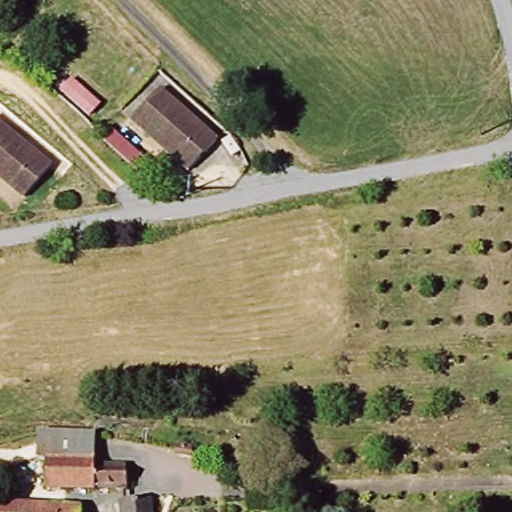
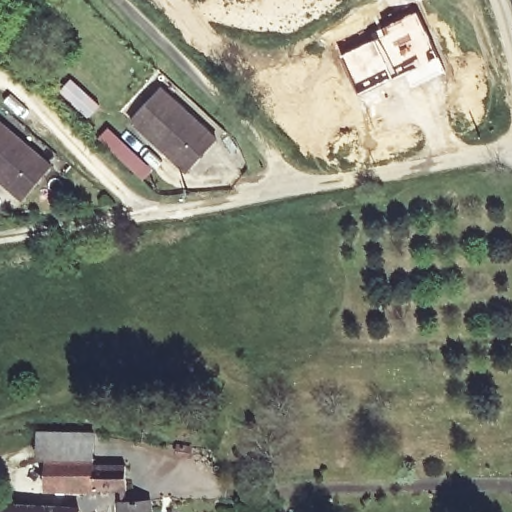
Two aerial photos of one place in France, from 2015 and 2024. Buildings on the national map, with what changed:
new [(378,36),(375,31),(415,11),(439,58),(394,78),(389,69),(357,84),(342,54),(378,36)]
unchanged [(163,89),(219,140),(195,167),(138,117),(163,89)]
unchanged [(28,200),(0,174),(0,122),(53,172),(28,200)]
unchanged [(96,433),(96,457),(51,456),(39,456),(40,432),(96,433)]
unchanged [(96,457),(95,463),(133,463),(131,490),(51,488),(51,456),(96,457)]
unchanged [(155,500),(155,512),(127,512),(126,502),(155,500)]
unchanged [(83,512),(0,512),(0,502),(83,506),(83,512)]

